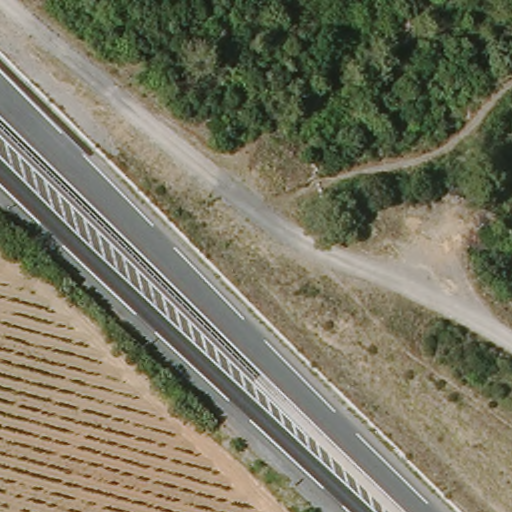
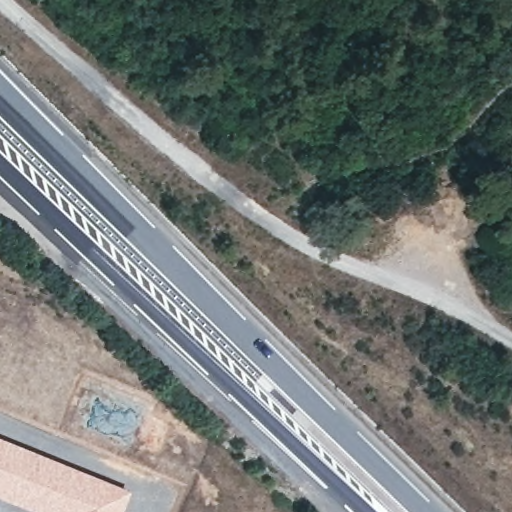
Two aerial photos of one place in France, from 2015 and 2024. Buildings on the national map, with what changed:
new [(10,441),(130,490),(120,512),(32,512),(0,499),(0,437),(10,441)]

